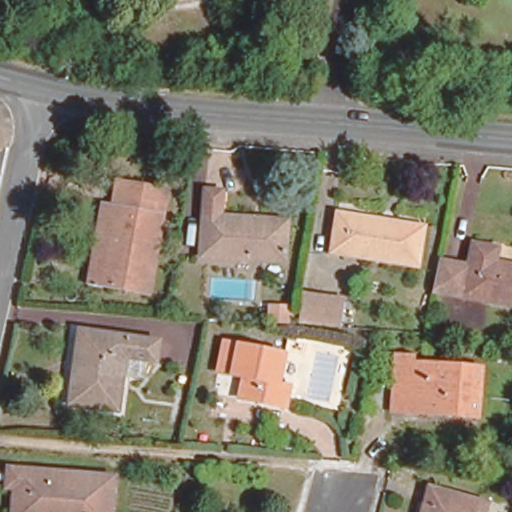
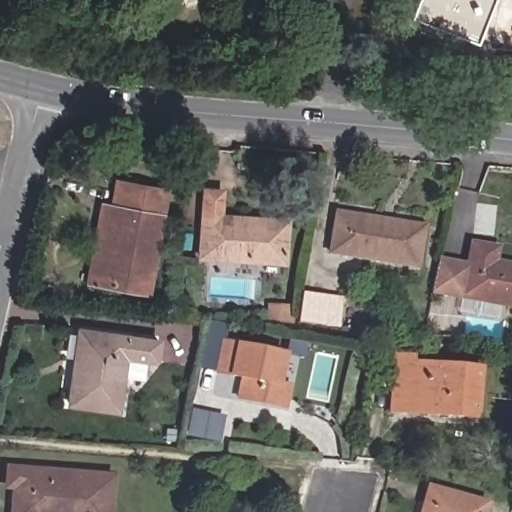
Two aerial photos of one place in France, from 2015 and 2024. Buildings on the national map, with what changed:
new [(416,0),(493,0),(476,43),(409,18),(416,0)]
unchanged [(115,204),(120,178),(166,187),(147,282),(86,273),(101,201),(115,204)]
unchanged [(280,216),(279,254),(197,252),(201,181),(216,182),(215,207),(245,209),(245,215),(280,216)]
unchanged [(416,260),(329,249),(337,206),(421,216),(416,260)]
unchanged [(512,259),(512,300),(459,292),(468,238),(499,243),(497,257),(512,259)]
unchanged [(268,305),(298,306),(298,294),(347,297),(344,329),(267,322),(268,305)]
unchanged [(119,402),(68,393),(81,319),(160,333),(156,354),(128,349),(119,402)]
unchanged [(217,363),(225,332),(284,347),(277,374),(287,376),(281,401),(239,390),(244,370),(217,363)]
unchanged [(382,402),(386,352),(478,359),(473,409),(382,402)]
unchanged [(17,512),(19,487),(7,486),(9,464),(20,465),(116,473),(113,512),(17,512)]
unchanged [(482,493),(478,512),(417,512),(425,479),(482,493)]

